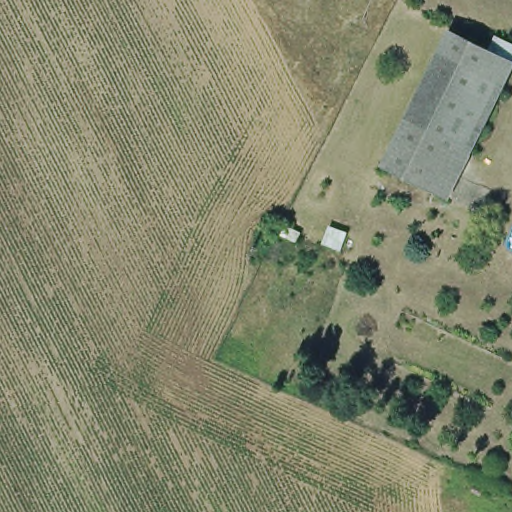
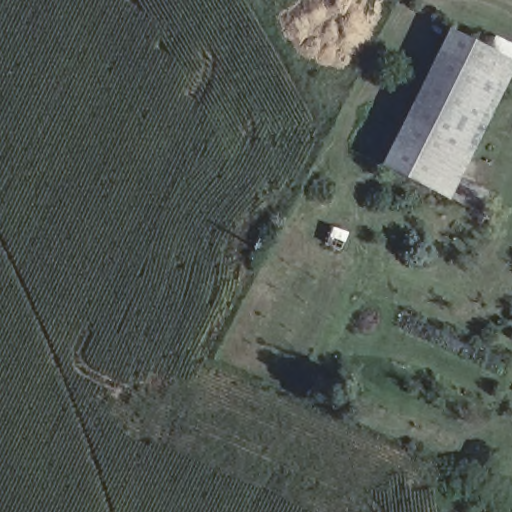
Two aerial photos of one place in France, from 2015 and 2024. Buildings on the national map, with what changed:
unchanged [(448,27),(487,46),(494,31),(512,39),(512,66),(475,151),(406,117),(448,27)]
unchanged [(475,151),(453,198),(385,165),(406,117),(475,151)]

